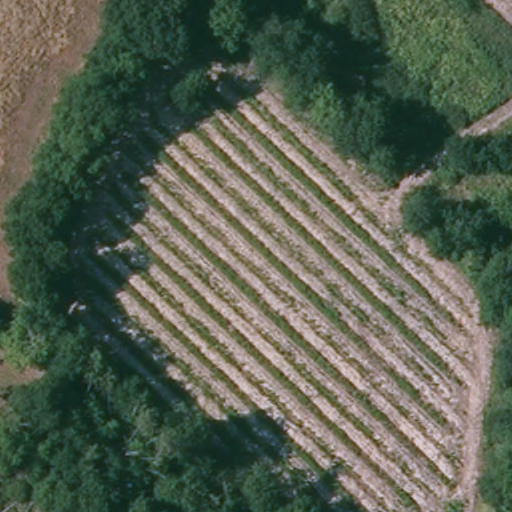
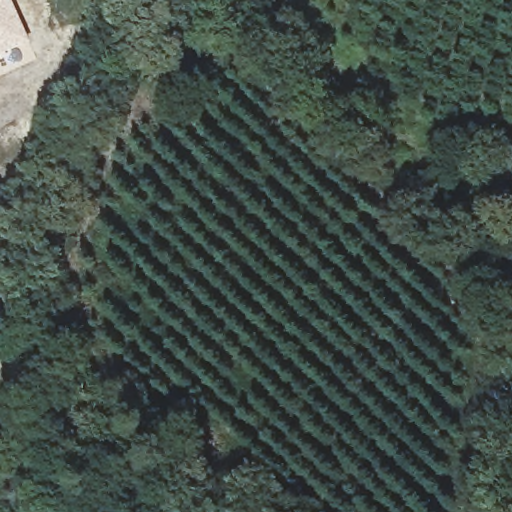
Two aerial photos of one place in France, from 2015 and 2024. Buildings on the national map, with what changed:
new [(13,0),(32,43),(0,60),(0,0),(13,0)]

